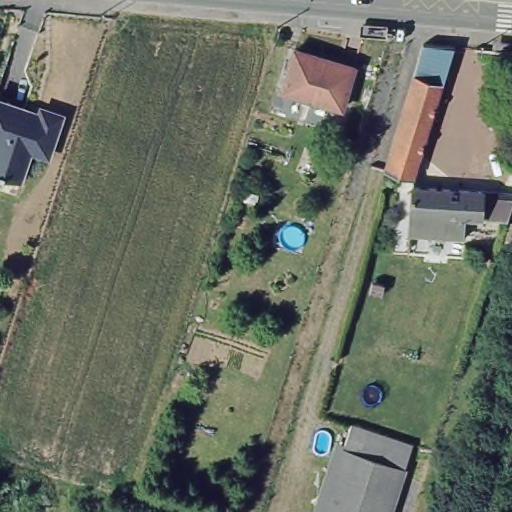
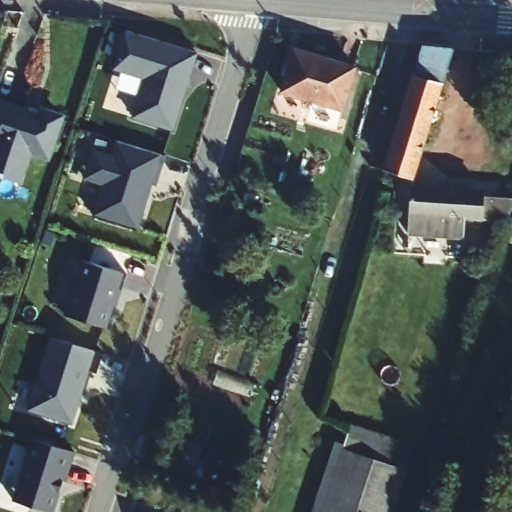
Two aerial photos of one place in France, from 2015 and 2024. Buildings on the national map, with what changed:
new [(196,54),(174,134),(128,120),(140,81),(112,71),(123,30),(196,54)]
unchanged [(415,173),(388,164),(425,41),(455,43),(415,173)]
unchanged [(353,63),(341,105),(283,89),(295,44),(353,63)]
unchanged [(29,153),(18,182),(0,175),(0,105),(25,115),(24,119),(33,123),(35,118),(40,120),(42,112),(50,115),(60,119),(47,159),(40,157),(29,153)]
new [(160,156),(138,232),(91,218),(101,187),(83,181),(91,151),(110,156),(115,142),(160,156)]
unchanged [(471,187),(470,213),(468,233),(413,230),(416,184),(471,187)]
unchanged [(512,216),(470,213),(471,187),(512,189),(512,216)]
new [(125,275),(108,330),(63,315),(80,261),(125,275)]
new [(48,339),(93,354),(72,426),(25,413),(48,339)]
unchanged [(383,512),(316,512),(343,429),(405,449),(383,512)]
new [(54,512),(39,512),(11,504),(30,442),(73,453),(54,512)]

